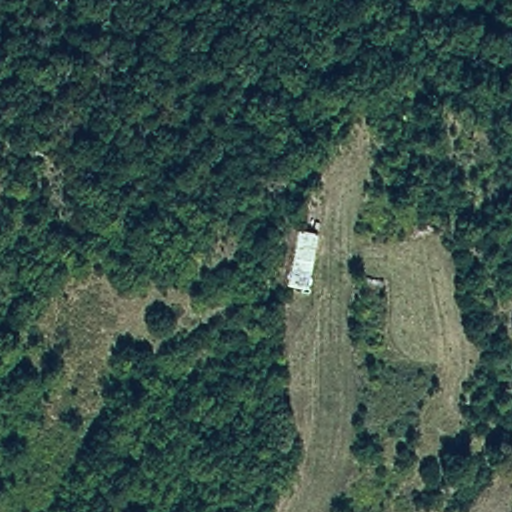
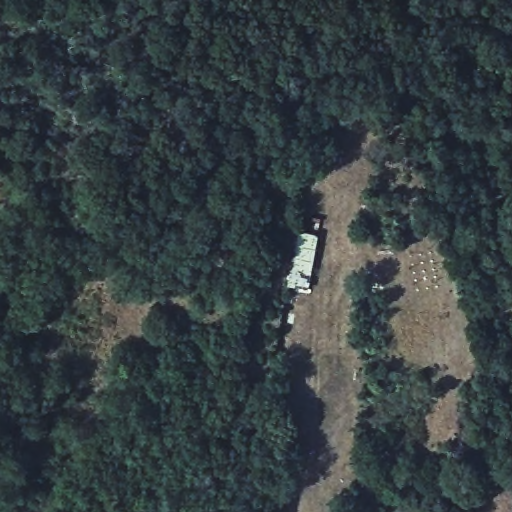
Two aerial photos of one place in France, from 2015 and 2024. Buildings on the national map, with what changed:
unchanged [(288,281),(295,226),(318,231),(308,285),(288,281)]

